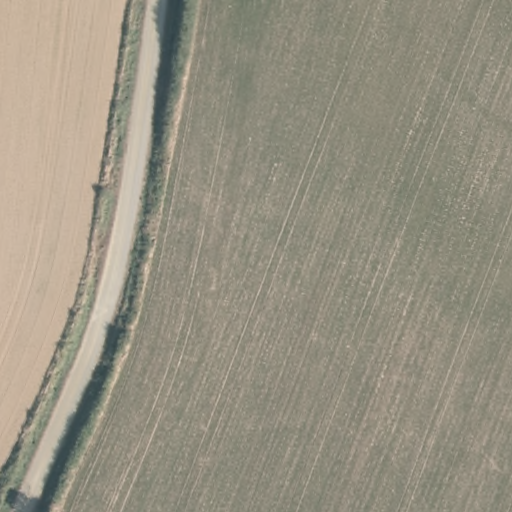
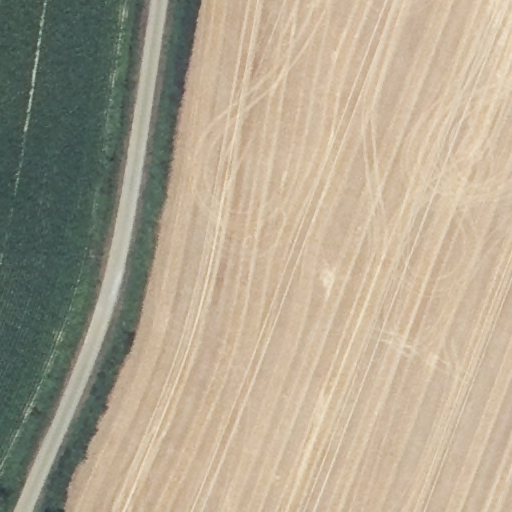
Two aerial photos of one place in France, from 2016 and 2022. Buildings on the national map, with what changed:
[]

